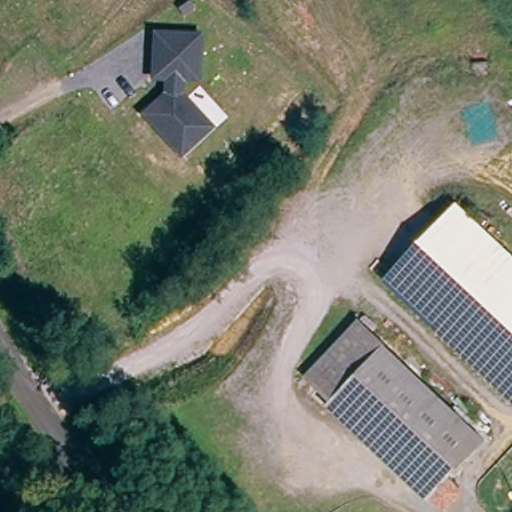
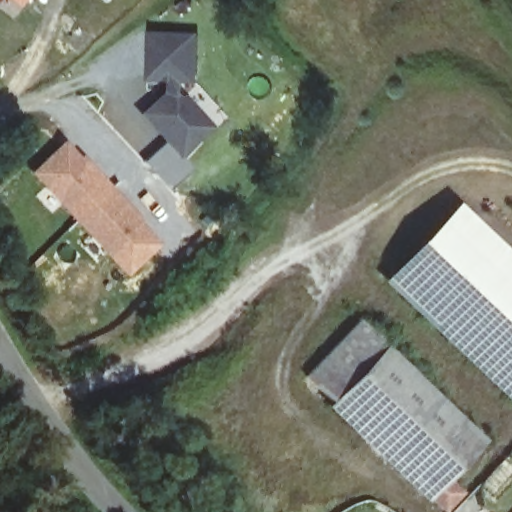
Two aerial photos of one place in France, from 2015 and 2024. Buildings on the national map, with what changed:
new [(27,2),(24,0),(29,0),(27,2)]
unchanged [(163,91),(162,79),(149,76),(151,30),(201,30),(200,80),(185,79),(187,95),(216,127),(182,156),(140,113),(163,91)]
new [(98,180),(119,203),(158,245),(128,273),(34,172),(64,144),(98,180)]
unchanged [(512,392),(386,273),(455,202),(512,255),(512,392)]
unchanged [(303,375),(357,320),(384,345),(330,401),(303,375)]
unchanged [(429,495),(330,401),(384,345),(483,438),(429,495)]

